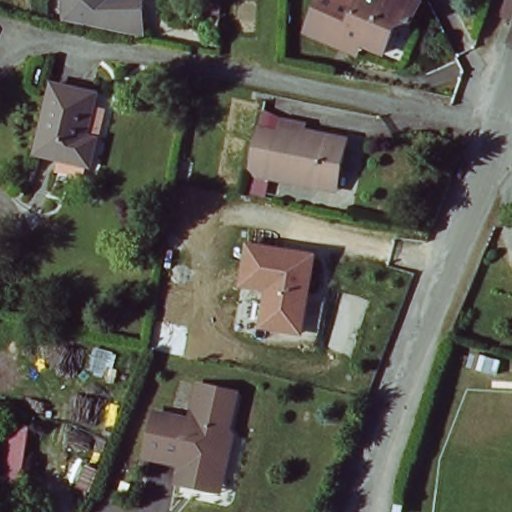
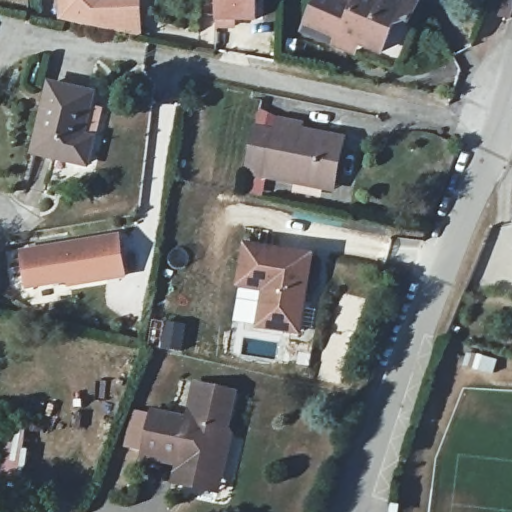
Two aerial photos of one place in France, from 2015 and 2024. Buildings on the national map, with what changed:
unchanged [(61,0),(104,0),(105,1),(140,1),(141,34),(135,33),(80,22),(70,20),(62,18),(61,0)]
new [(254,32),(215,31),(217,0),(254,0),(254,32)]
unchanged [(409,14),(411,25),(399,52),(390,55),(361,43),(353,45),(301,23),(311,0),(414,0),(409,14)]
unchanged [(506,14),(510,0),(512,0),(512,16),(506,14)]
unchanged [(96,89),(86,130),(98,133),(91,161),(37,148),(54,78),(96,89)]
unchanged [(326,189),(245,173),(254,129),(273,133),(276,119),(300,124),(298,131),(340,139),(335,169),(331,190),(326,189)]
new [(121,234),(128,278),(69,287),(69,283),(27,289),(19,249),(121,234)]
unchanged [(247,239),(313,250),(300,327),(261,321),(267,283),(240,279),(247,239)]
unchanged [(171,482),(176,461),(142,452),(151,412),(186,420),(195,384),(234,393),(225,429),(229,435),(219,478),(215,492),(171,482)]
new [(25,435),(21,507),(0,506),(0,443),(1,434),(25,435)]

